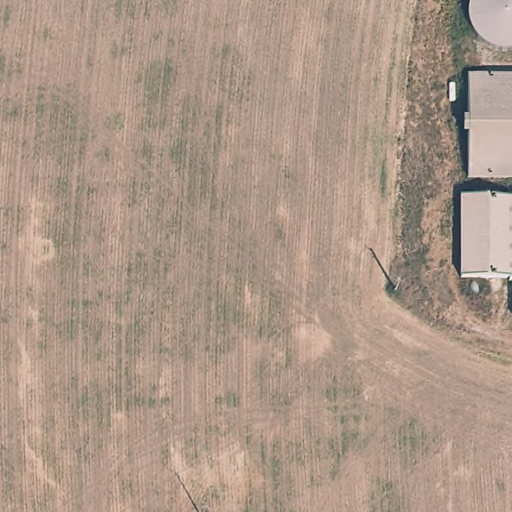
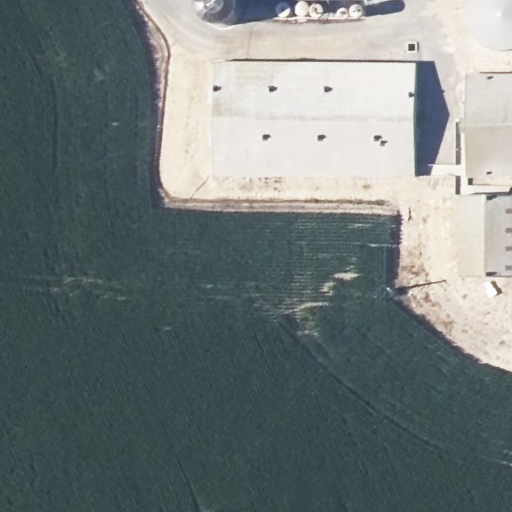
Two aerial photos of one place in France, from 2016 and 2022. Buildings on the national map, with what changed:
new [(367,0),(367,1),(295,2),(295,0),(367,0)]
new [(466,5),(468,0),(512,0),(512,52),(496,52),(486,49),(475,40),(468,29),(466,22),(465,17),(466,5)]
new [(214,61),(415,64),(415,179),(214,176),(214,61)]
unchanged [(468,76),(512,76),(512,177),(467,177),(468,76)]
new [(512,278),(458,278),(459,195),(512,195),(512,278)]

